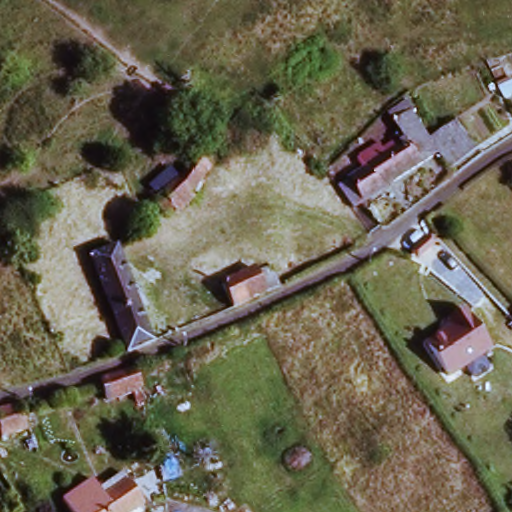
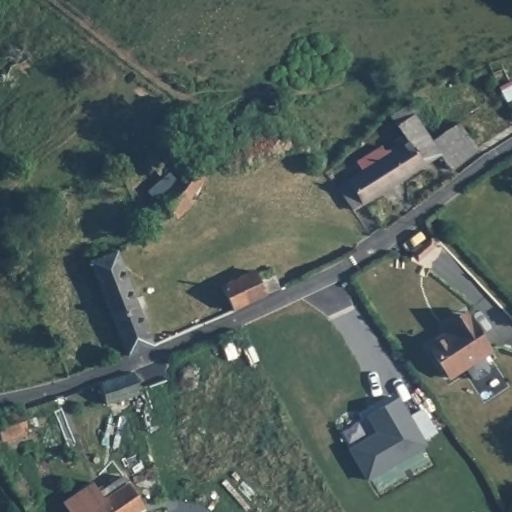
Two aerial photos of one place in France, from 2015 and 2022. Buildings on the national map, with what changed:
unchanged [(440,155),(365,204),(351,182),(376,166),(370,157),(390,145),(395,152),(417,137),(404,117),(419,107),(425,117),(421,120),(433,139),(460,122),(477,150),(447,167),(440,155)]
unchanged [(183,202),(187,208),(165,225),(151,205),(170,188),(192,161),(207,175),(183,202)]
unchanged [(87,251),(108,242),(112,252),(116,251),(156,345),(130,356),(87,251)]
unchanged [(220,288),(252,273),(267,266),(278,287),(263,296),(231,312),(220,288)]
unchanged [(451,371),(431,338),(457,322),(456,320),(474,309),(495,345),(451,371)]
unchanged [(141,393),(107,405),(100,385),(133,372),(141,393)]
new [(423,441),(364,475),(346,445),(368,432),(369,434),(376,430),(365,411),(395,394),(420,436),(423,441)]
new [(420,406),(433,428),(420,436),(407,414),(420,406)]
unchanged [(18,413),(22,435),(0,437),(0,415),(18,413)]
unchanged [(98,498),(126,478),(133,488),(96,512),(61,512),(93,491),(98,498)]
unchanged [(147,511),(146,512),(96,512),(133,488),(147,511)]

